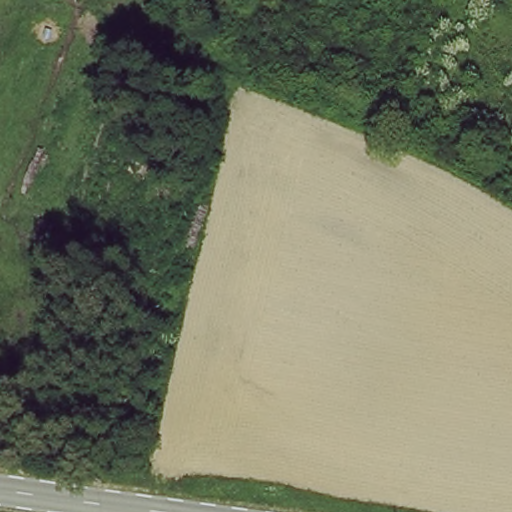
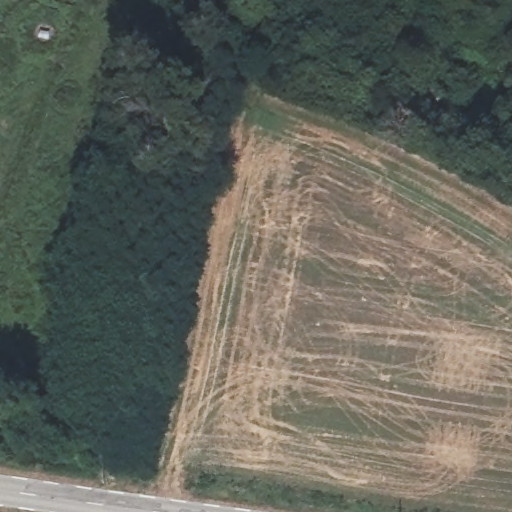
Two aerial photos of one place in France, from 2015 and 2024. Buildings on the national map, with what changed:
[]

